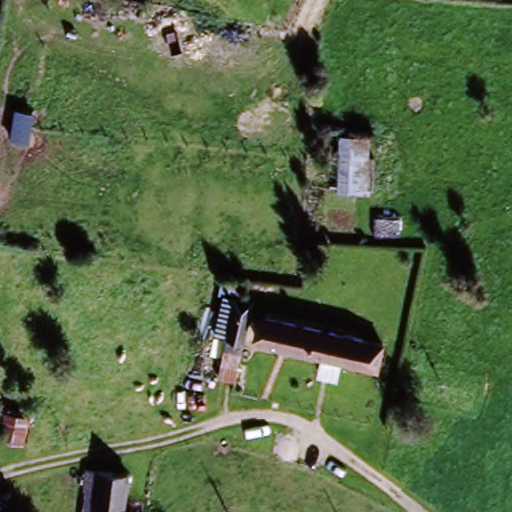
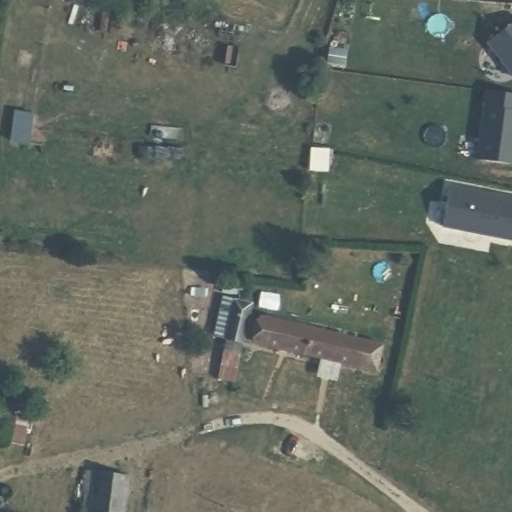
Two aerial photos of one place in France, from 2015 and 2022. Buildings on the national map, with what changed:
new [(512,24),(512,75),(487,42),(512,24)]
new [(485,91),(512,95),(512,163),(475,159),(485,91)]
demolished [(339,126),(377,130),(372,192),(333,188),(339,126)]
new [(452,185),(512,197),(512,241),(442,228),(452,185)]
unchanged [(223,341),(235,294),(250,295),(238,346),(223,341)]
unchanged [(320,372),(325,356),(295,348),(260,339),(268,312),(362,339),(385,344),(378,369),(339,360),(335,376),(320,372)]
unchanged [(11,421),(28,423),(25,444),(8,441),(11,421)]
unchanged [(95,469),(125,471),(124,487),(122,512),(91,512),(93,484),(95,469)]

